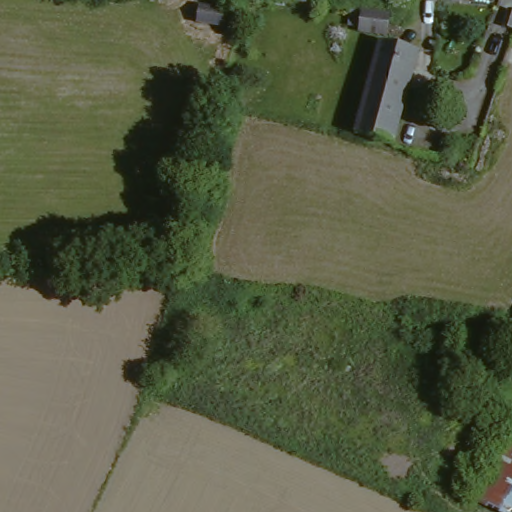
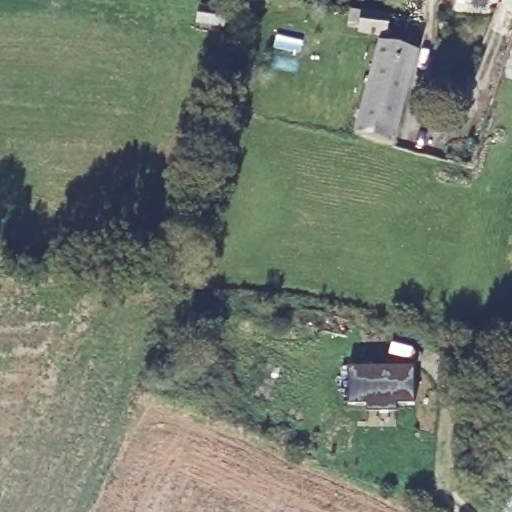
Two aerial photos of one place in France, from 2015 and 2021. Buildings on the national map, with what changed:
unchanged [(235,0),(256,0),(256,1),(235,0)]
unchanged [(300,0),(298,15),(268,11),(270,0),(300,0)]
unchanged [(215,13),(214,32),(187,29),(189,10),(215,13)]
unchanged [(512,13),(512,30),(505,28),(508,11),(512,13)]
unchanged [(390,20),(387,40),(361,37),(364,17),(390,20)]
unchanged [(382,49),(419,58),(468,71),(463,88),(414,76),(393,150),(357,141),(381,50),(382,49)]
unchanged [(455,351),(481,361),(467,400),(440,388),(455,351)]
new [(347,369),(413,368),(413,406),(396,407),(396,414),(366,415),(366,405),(348,405),(347,369)]

